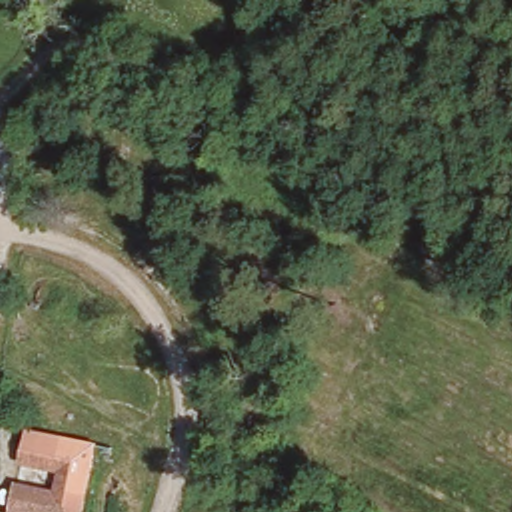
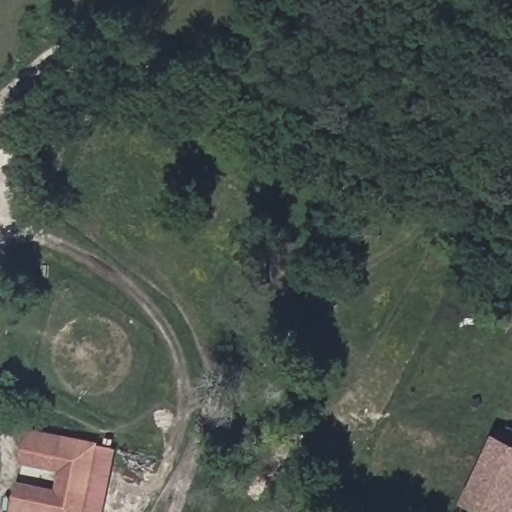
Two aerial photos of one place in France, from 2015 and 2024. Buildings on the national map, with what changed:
unchanged [(18,480),(55,488),(59,471),(21,462),(30,426),(97,445),(85,512),(14,512),(18,480)]
new [(464,501),(495,435),(512,443),(512,512),(488,512),(464,501)]

